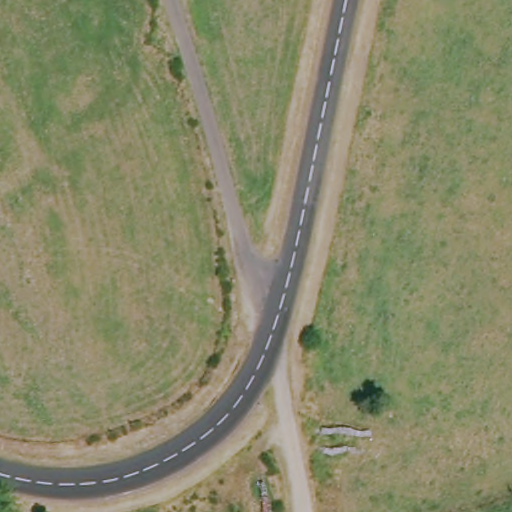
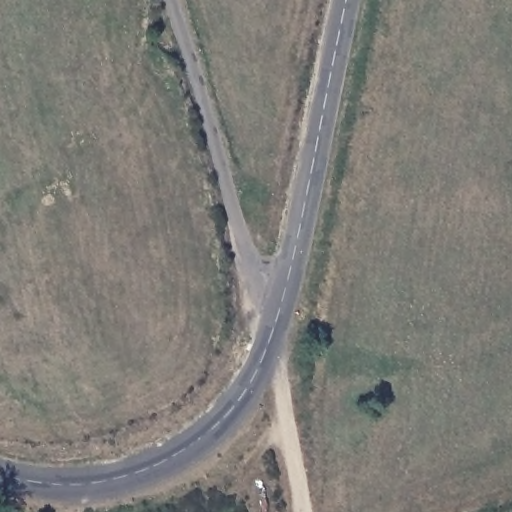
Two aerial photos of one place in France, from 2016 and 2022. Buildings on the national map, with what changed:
[]

